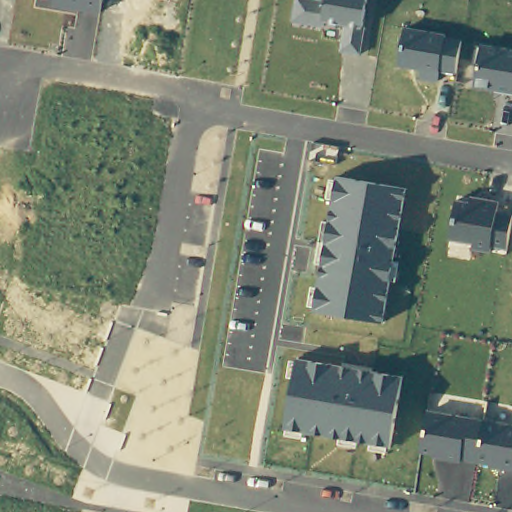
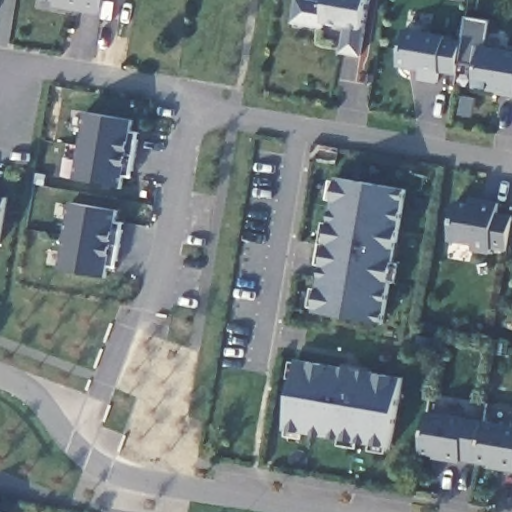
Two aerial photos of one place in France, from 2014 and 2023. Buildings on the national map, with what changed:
unchanged [(100,11),(41,3),(42,0),(103,0),(100,11)]
unchanged [(340,52),(342,28),(323,25),(292,22),(295,0),(307,0),(327,2),(328,0),(368,0),(361,55),(340,52)]
unchanged [(455,75),(440,73),(437,84),(418,81),(418,71),(397,67),(402,32),(461,41),(455,75)]
unchanged [(474,89),(479,47),(512,52),(512,94),(474,89)]
new [(132,121),(131,132),(140,133),(131,178),(124,178),(123,188),(73,180),(85,111),(132,121)]
unchanged [(382,323),(315,313),(335,179),(405,189),(382,323)]
new [(0,246),(0,198),(6,198),(0,246)]
unchanged [(507,250),(493,248),(491,254),(472,250),(472,246),(449,241),(455,201),(467,203),(468,198),(498,203),(496,212),(511,215),(507,250)]
new [(117,212),(115,223),(123,225),(116,268),(109,267),(107,278),(58,270),(71,201),(117,212)]
unchanged [(390,448),(286,431),(297,361),(402,378),(390,448)]
unchanged [(420,455),(426,413),(512,427),(512,470),(420,455)]

